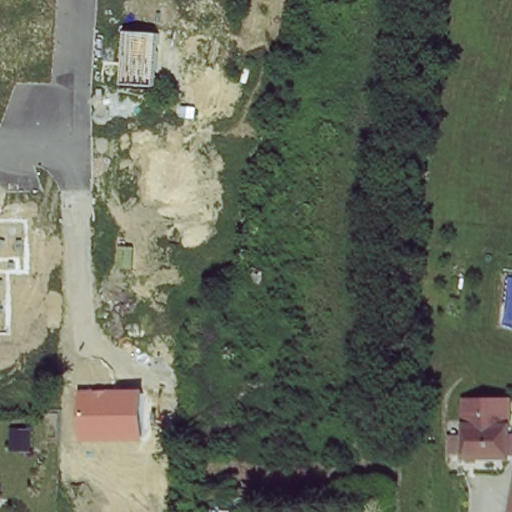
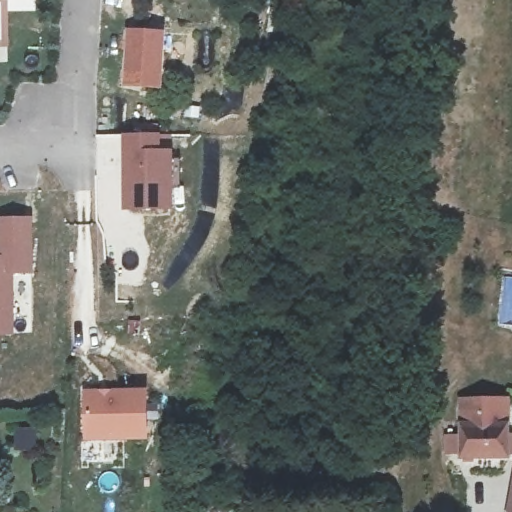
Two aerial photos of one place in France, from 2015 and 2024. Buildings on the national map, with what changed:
unchanged [(125,85),(130,32),(163,34),(159,86),(125,85)]
new [(172,210),(122,209),(121,135),(159,134),(160,150),(170,151),(172,210)]
new [(1,258),(1,220),(33,220),(33,272),(13,272),(13,332),(0,333),(0,258),(1,258)]
unchanged [(86,441),(85,390),(149,388),(148,439),(86,441)]
unchanged [(465,459),(450,460),(449,443),(464,442),(462,405),(512,404),(512,461),(465,463),(465,459)]

